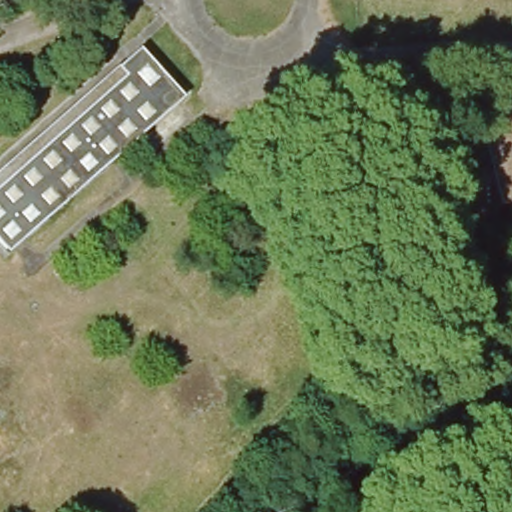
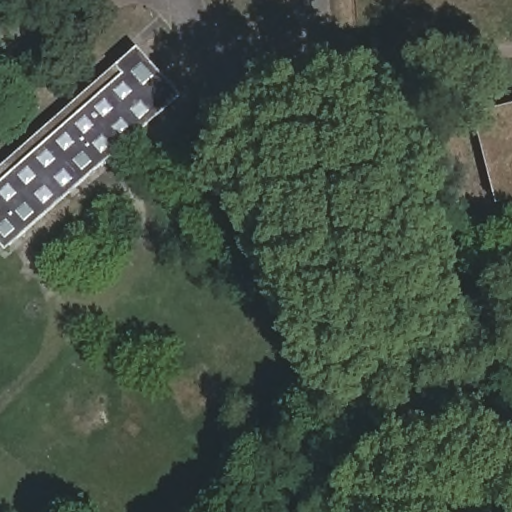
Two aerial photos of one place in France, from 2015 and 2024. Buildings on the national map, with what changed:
unchanged [(0,238),(0,169),(142,44),(181,91),(6,245),(0,238)]
unchanged [(497,183),(486,116),(512,112),(512,180),(497,183)]

